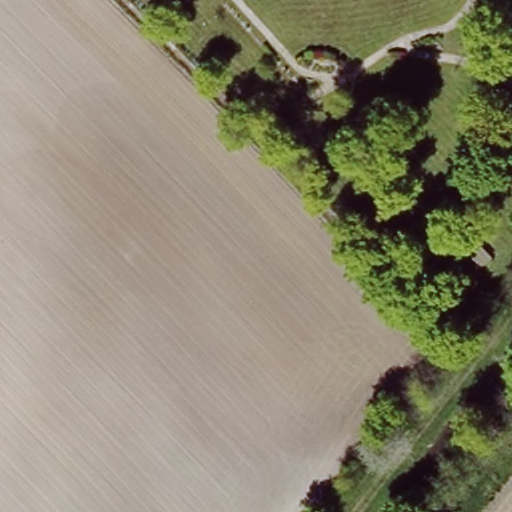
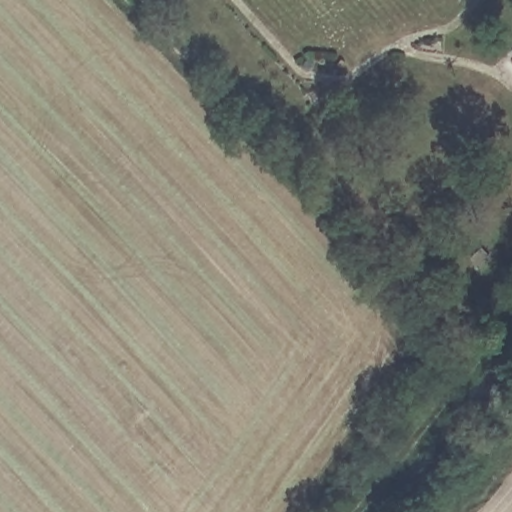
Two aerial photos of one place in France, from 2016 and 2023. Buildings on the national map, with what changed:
unchanged [(512,51),(511,48),(512,48),(512,51)]
unchanged [(405,229),(392,237),(359,184),(370,177),(405,229)]

